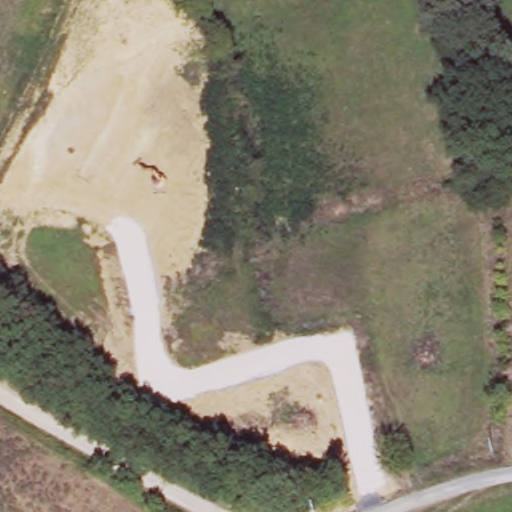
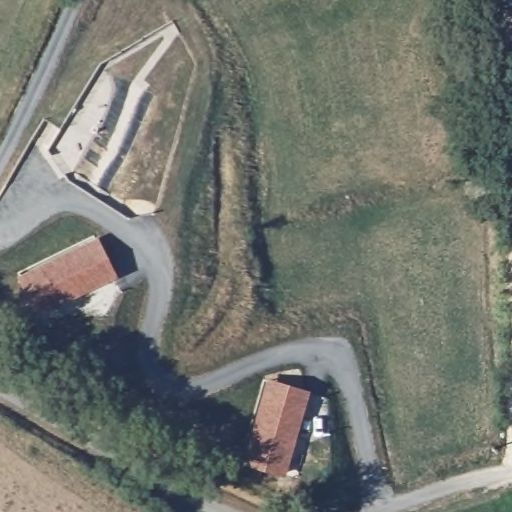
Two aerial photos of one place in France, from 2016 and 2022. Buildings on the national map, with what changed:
new [(36,316),(18,276),(98,237),(116,276),(36,316)]
new [(243,464),(267,379),(309,392),(285,476),(243,464)]

